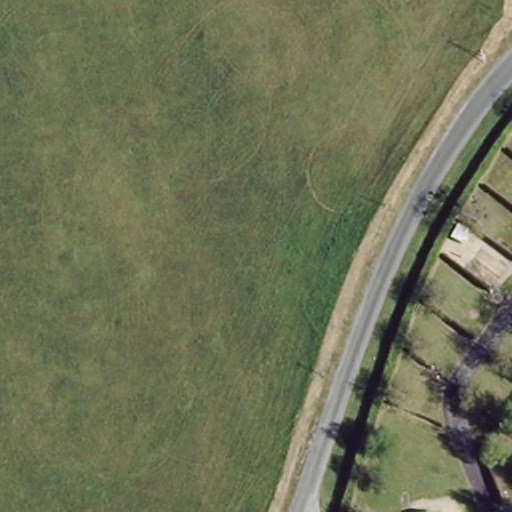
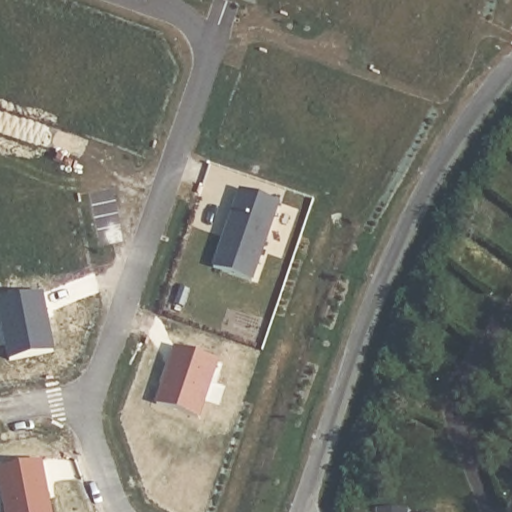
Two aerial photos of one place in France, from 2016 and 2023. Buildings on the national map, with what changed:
new [(241,190),(279,204),(252,281),(213,268),(241,190)]
new [(53,352),(10,360),(0,311),(0,301),(42,293),(53,352)]
new [(176,347),(218,362),(198,419),(157,404),(176,347)]
new [(51,512),(6,512),(0,480),(0,470),(41,461),(51,512)]

